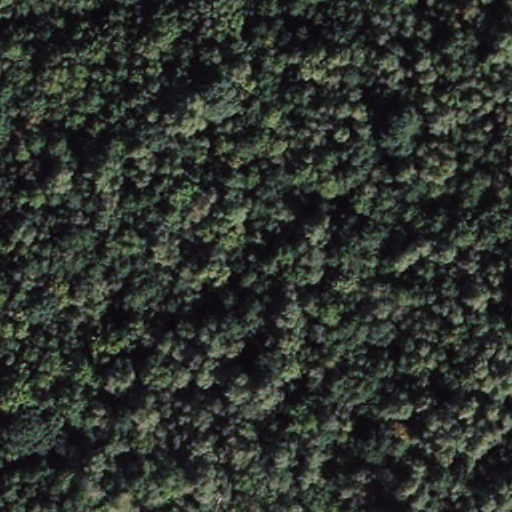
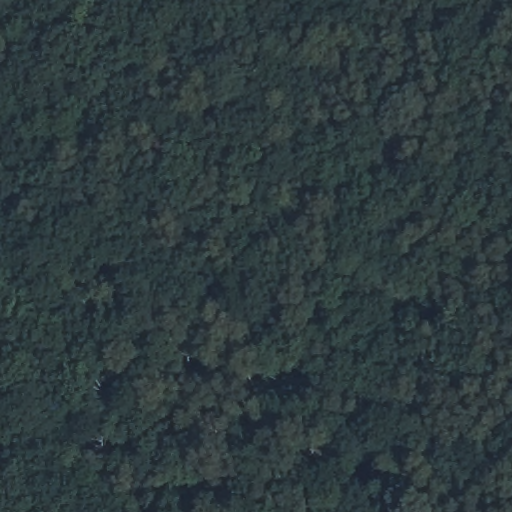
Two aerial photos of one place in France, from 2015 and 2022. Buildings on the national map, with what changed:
[]

